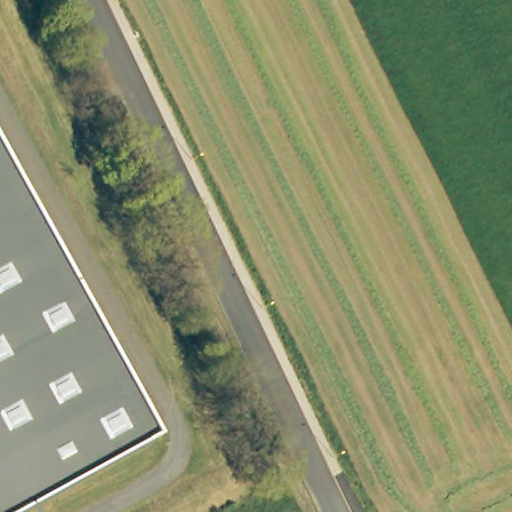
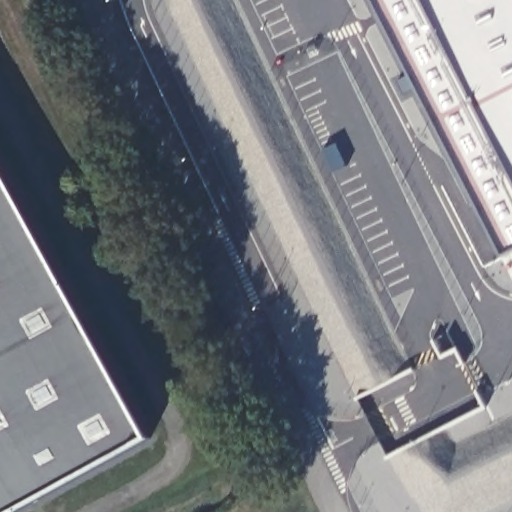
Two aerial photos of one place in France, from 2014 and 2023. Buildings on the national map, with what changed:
new [(505,260),(371,0),(512,0),(512,256),(505,260)]
unchanged [(8,512),(0,512),(0,165),(149,435),(8,512)]

